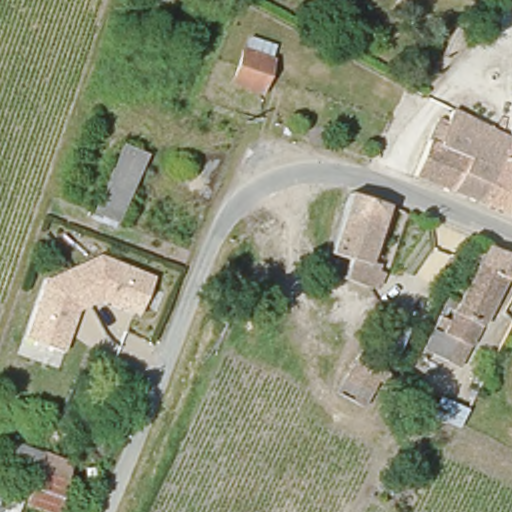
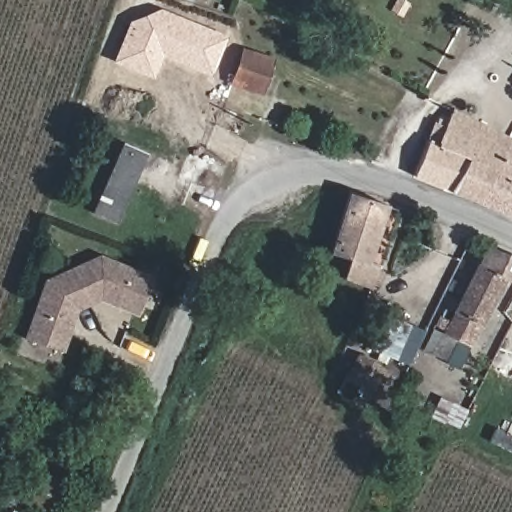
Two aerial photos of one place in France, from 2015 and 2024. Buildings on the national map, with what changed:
new [(128,21),(160,9),(227,35),(210,76),(161,57),(152,78),(112,63),(128,21)]
unchanged [(245,49),(271,61),(259,91),(232,79),(245,49)]
unchanged [(475,203),(411,176),(446,119),(449,122),(456,111),(496,134),(512,144),(512,149),(476,200),(475,203)]
unchanged [(124,215),(98,203),(128,135),(154,147),(124,215)]
unchanged [(475,203),(476,200),(512,149),(512,219),(507,217),(475,203)]
unchanged [(348,260),(329,252),(331,247),(351,193),(387,208),(366,262),(380,268),(373,285),(371,292),(341,279),(348,260)]
unchanged [(475,270),(485,250),(512,261),(512,291),(501,285),(475,270)]
unchanged [(77,312),(65,350),(28,340),(47,280),(100,256),(155,277),(142,316),(99,302),(77,312)]
unchanged [(466,354),(441,341),(475,270),(501,285),(466,354)]
unchanged [(375,342),(378,333),(389,308),(413,317),(402,345),(399,353),(375,342)]
unchanged [(355,367),(381,378),(370,402),(344,390),(355,367)]
unchanged [(28,491),(31,475),(5,465),(14,442),(73,466),(53,512),(31,512),(21,509),(19,512),(0,512),(0,485),(28,491)]

